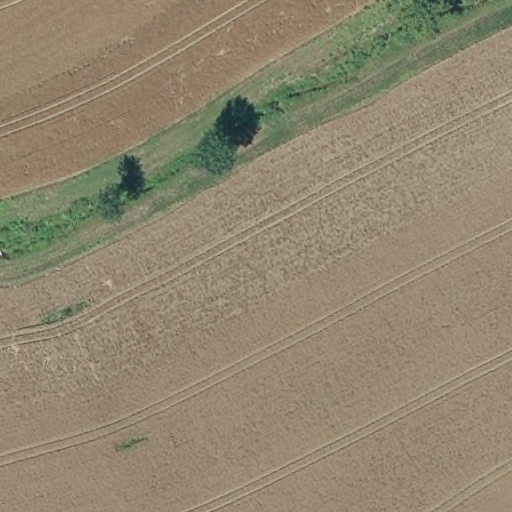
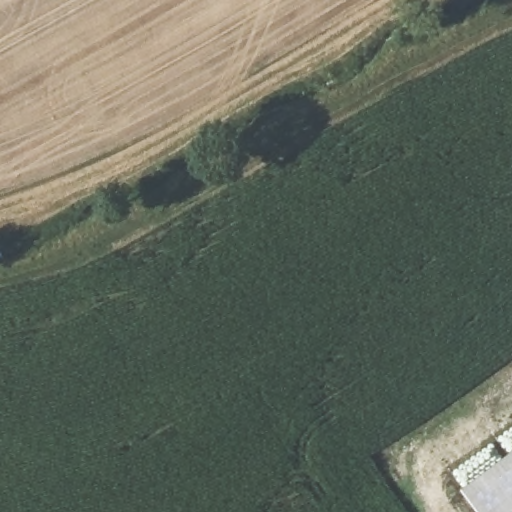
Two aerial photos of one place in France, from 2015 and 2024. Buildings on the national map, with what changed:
new [(474,512),(458,492),(512,452),(512,512),(474,512)]

